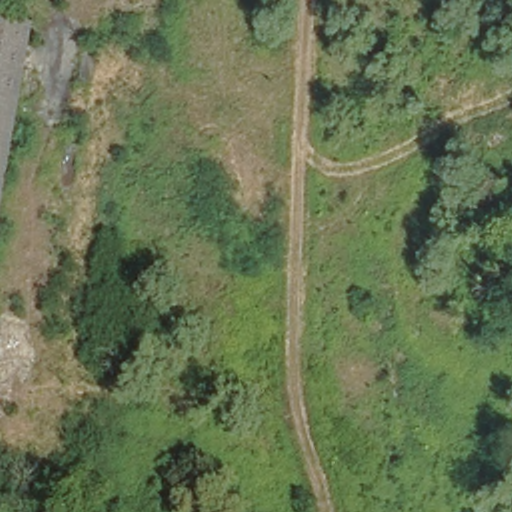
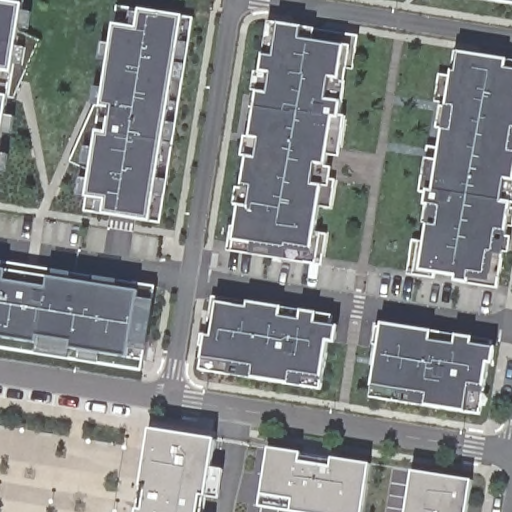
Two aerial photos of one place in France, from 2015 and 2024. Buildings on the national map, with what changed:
new [(10,98),(0,162),(0,0),(25,0),(20,31),(41,41),(15,99),(10,98)]
new [(478,0),(512,0),(512,5),(478,0)]
new [(85,212),(91,170),(71,161),(95,106),(101,106),(117,6),(194,19),(162,225),(85,212)]
demolished [(5,181),(0,199),(0,12),(34,19),(5,181)]
new [(320,266),(230,251),(266,21),(357,36),(320,266)]
new [(498,284),(418,271),(456,53),(512,63),(512,195),(498,284)]
demolished [(0,205),(0,199),(5,181),(0,205)]
new [(0,348),(0,263),(90,279),(86,303),(152,312),(143,371),(0,348)]
new [(156,288),(152,312),(86,303),(90,279),(156,288)]
new [(197,371),(207,296),(333,315),(321,392),(197,371)]
new [(368,397),(380,323),(493,342),(482,416),(368,397)]
new [(151,430),(216,440),(205,512),(138,512),(151,430)]
new [(363,512),(291,512),(260,507),(269,449),(371,465),(363,512)]
new [(413,472),(472,481),(468,512),(407,512),(413,472)]

